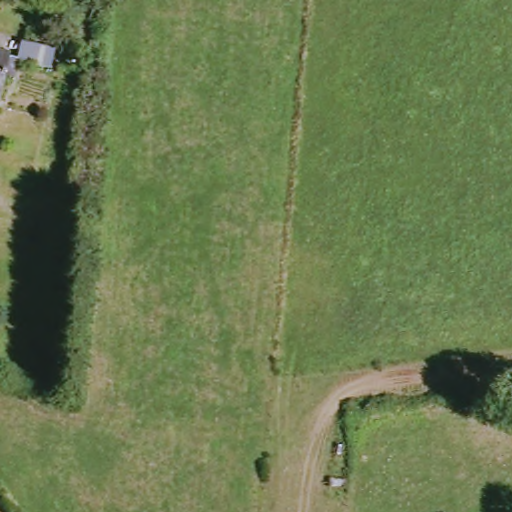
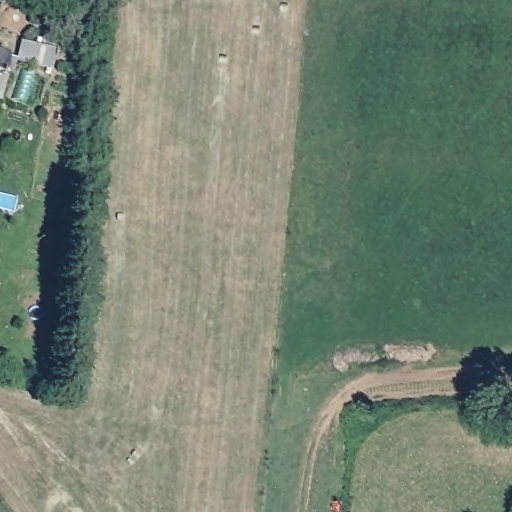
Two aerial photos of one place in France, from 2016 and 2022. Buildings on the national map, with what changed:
unchanged [(0,101),(0,52),(11,54),(2,101),(0,101)]

